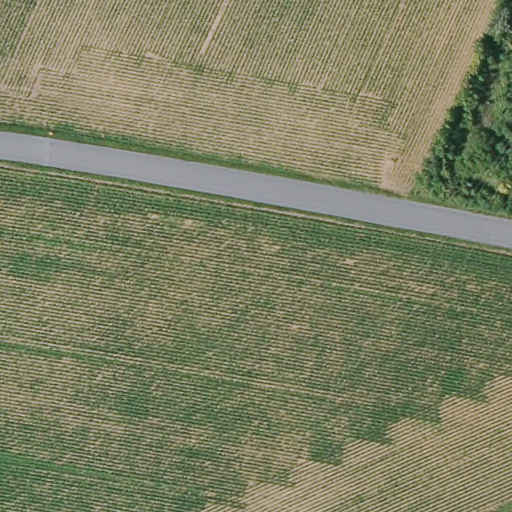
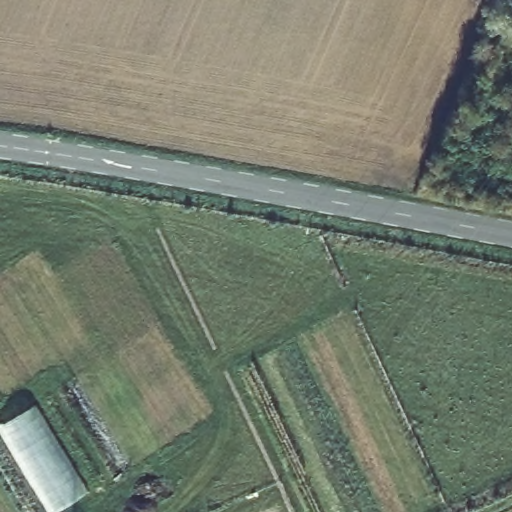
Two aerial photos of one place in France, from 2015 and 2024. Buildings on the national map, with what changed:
new [(90,491),(51,512),(50,512),(0,432),(0,425),(37,405),(90,491)]

